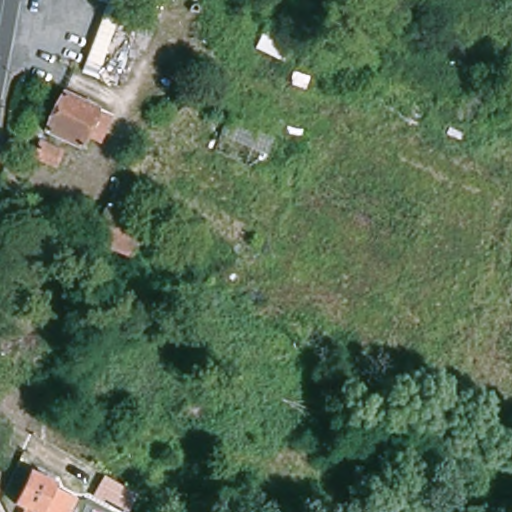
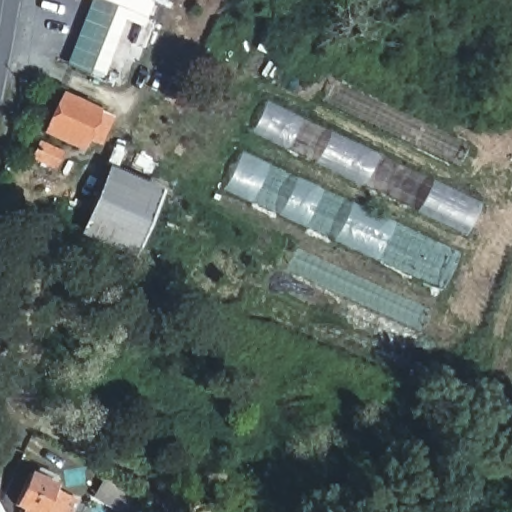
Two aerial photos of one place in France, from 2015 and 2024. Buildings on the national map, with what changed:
unchanged [(122,9),(107,0),(127,0),(122,9)]
unchanged [(121,19),(99,76),(84,69),(105,14),(121,19)]
unchanged [(100,146),(84,140),(81,147),(41,134),(57,91),(100,107),(112,115),(100,146)]
new [(266,101),(483,202),(442,293),(221,191),(266,101)]
unchanged [(42,143),(63,153),(57,168),(36,158),(42,143)]
unchanged [(128,249),(92,234),(109,197),(144,212),(128,249)]
unchanged [(12,503),(22,481),(26,473),(50,484),(47,490),(71,502),(66,512),(29,512),(30,511),(12,503)]
new [(137,499),(131,512),(117,512),(92,499),(103,477),(137,499)]

